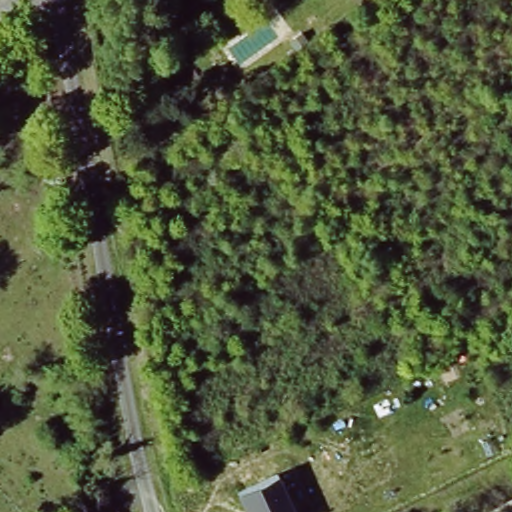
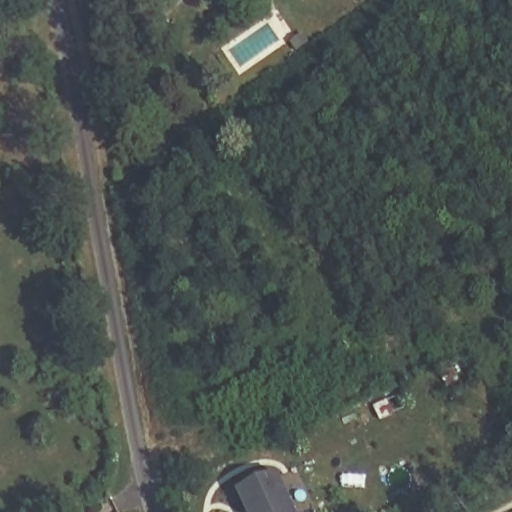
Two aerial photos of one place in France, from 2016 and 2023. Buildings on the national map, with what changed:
unchanged [(282,475),(297,512),(247,512),(239,492),(282,475)]

